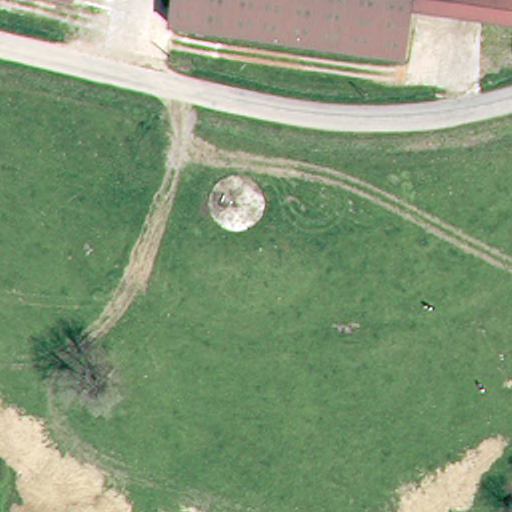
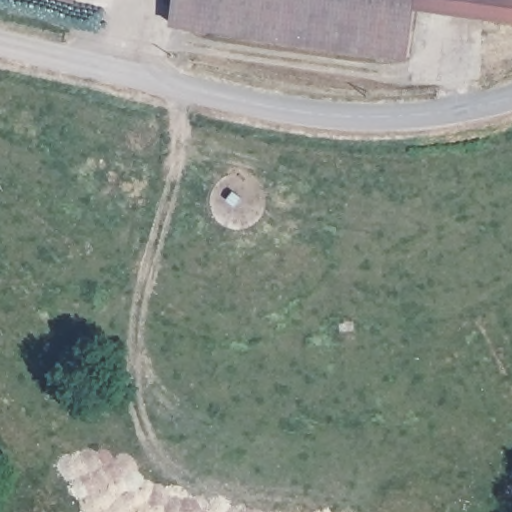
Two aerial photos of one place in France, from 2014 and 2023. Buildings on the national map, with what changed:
unchanged [(411,13),(402,60),(169,18),(172,0),(413,0),(411,13)]
unchanged [(411,13),(413,0),(512,0),(512,29),(411,13)]

